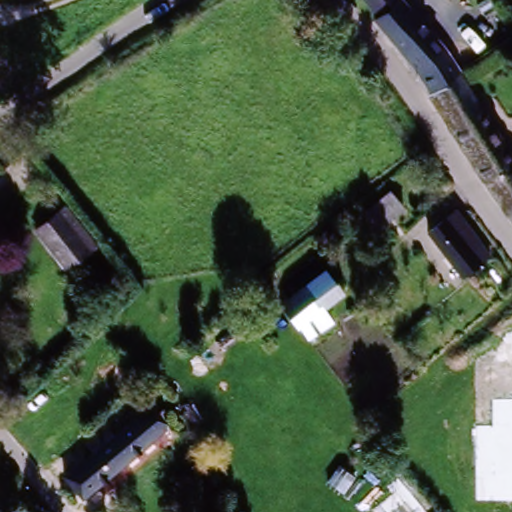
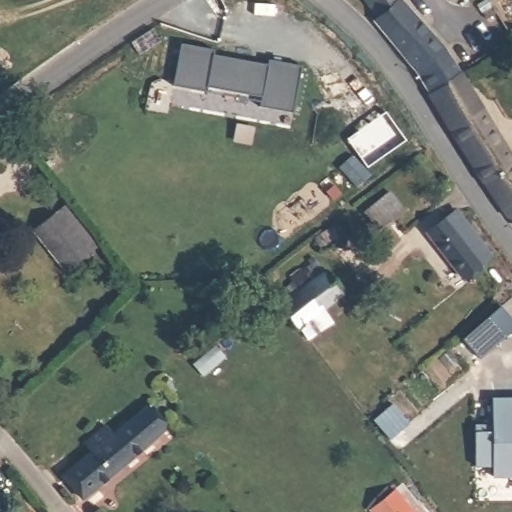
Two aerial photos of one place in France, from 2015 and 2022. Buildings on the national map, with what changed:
unchanged [(430,97),(428,87),(402,53),(375,21),(380,17),(366,0),(406,0),(430,27),(461,72),(481,111),(450,132),(430,97)]
new [(213,48),(212,53),(267,62),(267,58),(301,65),(292,112),(258,105),(260,95),(206,86),(205,91),(172,84),(180,41),(213,48)]
unchanged [(481,111),(485,108),(512,153),(512,220),(450,132),(481,111)]
unchanged [(365,209),(388,191),(405,209),(380,229),(365,209)]
unchanged [(63,213),(92,252),(67,269),(38,230),(63,213)]
unchanged [(427,241),(456,218),(488,261),(462,281),(427,241)]
unchanged [(330,324),(315,335),(310,339),(287,312),(277,302),(318,269),(327,280),(349,308),(330,324)]
new [(512,478),(493,478),(493,468),(477,468),(476,424),(493,423),(492,399),(512,398),(512,478)]
unchanged [(73,475),(92,458),(86,448),(111,431),(118,442),(153,417),(171,441),(90,499),(73,475)]
new [(426,512),(371,512),(368,509),(403,484),(426,512)]

